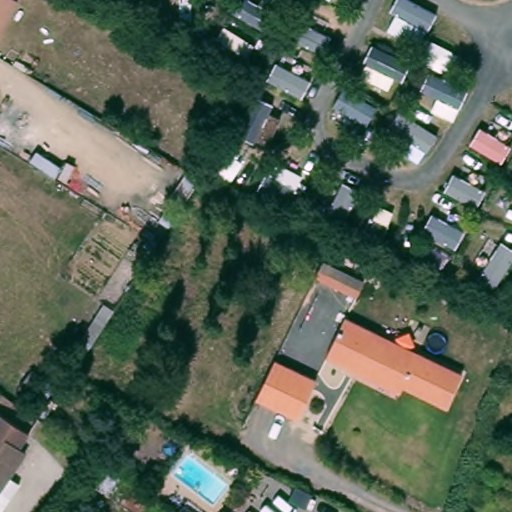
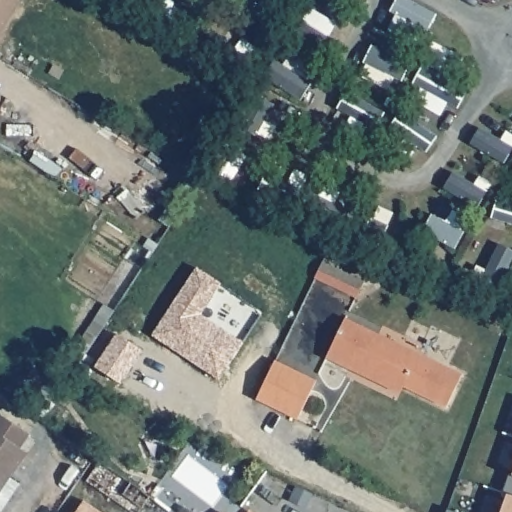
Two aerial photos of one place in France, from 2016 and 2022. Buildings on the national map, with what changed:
unchanged [(15,0),(22,4),(0,42),(0,0),(15,0)]
new [(322,261),(364,281),(356,297),(315,277),(322,261)]
new [(197,267),(222,283),(201,314),(244,342),(219,380),(152,335),(197,267)]
unchanged [(347,316),(461,372),(443,407),(327,355),(347,316)]
new [(117,332),(142,349),(120,382),(95,366),(117,332)]
unchanged [(315,378),(297,415),(257,397),(276,359),(315,378)]
unchanged [(30,435),(22,448),(27,451),(0,490),(0,416),(30,435)]
unchanged [(141,512),(132,512),(96,486),(89,480),(102,460),(109,465),(151,496),(141,512)]
new [(503,492),(509,476),(512,477),(512,496),(507,495),(503,492)]
new [(512,512),(501,512),(507,495),(512,496),(512,512)]
new [(99,512),(76,512),(84,501),(99,512)]
new [(448,505),(462,512),(446,512),(448,505)]

